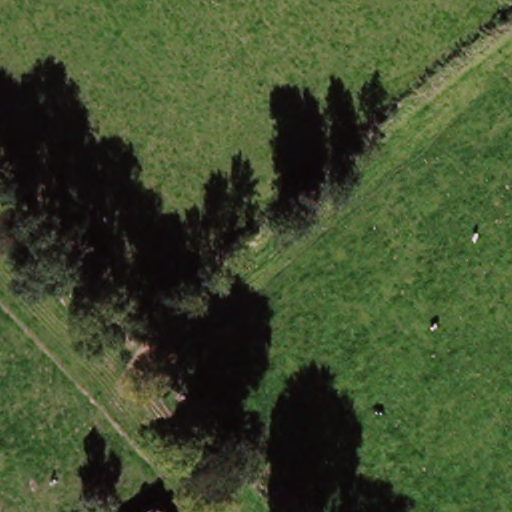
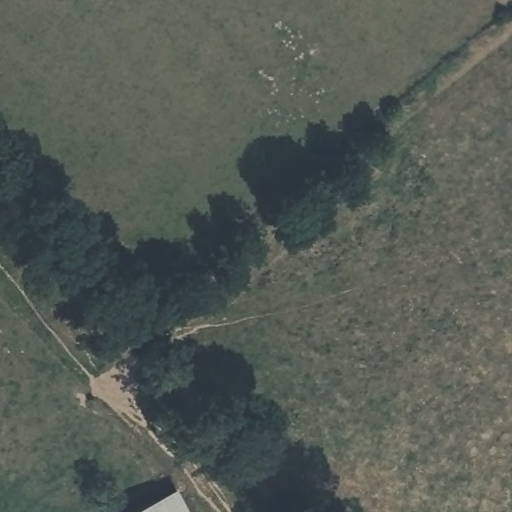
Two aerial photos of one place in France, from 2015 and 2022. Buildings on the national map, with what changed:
new [(182,495),(191,512),(147,512),(182,495)]

